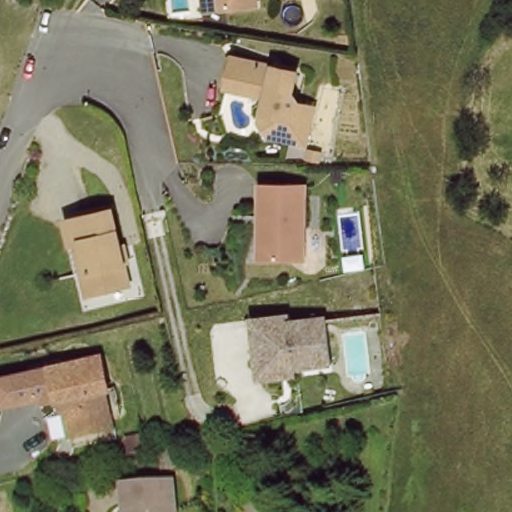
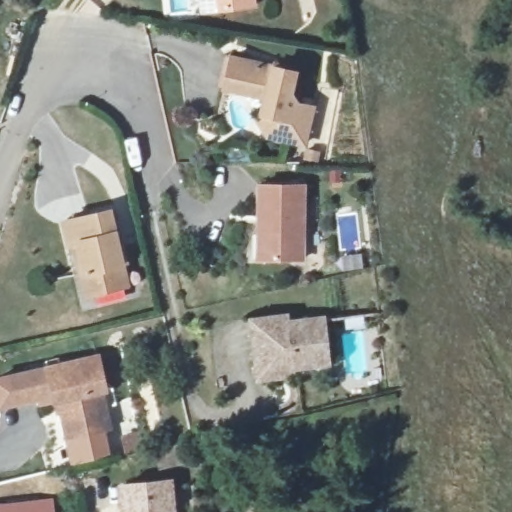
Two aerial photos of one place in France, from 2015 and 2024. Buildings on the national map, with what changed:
unchanged [(260,0),(261,9),(221,14),(210,15),(209,0),(260,0)]
unchanged [(267,101),(246,96),(226,91),(233,60),(297,76),(292,96),(299,107),(315,111),(306,147),(268,139),(260,126),(267,101)]
unchanged [(261,215),(261,183),(305,184),(305,257),(270,257),(261,257),(261,215)]
unchanged [(88,272),(81,241),(76,242),(71,219),(117,209),(135,283),(99,292),(93,292),(88,272)]
unchanged [(290,317),(291,323),(327,319),(332,367),(296,372),(297,379),(259,383),(252,321),(290,317)]
unchanged [(102,427),(66,434),(60,399),(45,402),(44,396),(5,403),(0,382),(0,377),(52,366),(51,360),(66,357),(67,363),(102,357),(107,382),(102,383),(105,401),(111,426),(102,427)]
unchanged [(173,481),(177,512),(123,512),(121,484),(173,481)]
new [(55,500),(56,512),(0,512),(0,506),(55,500)]

